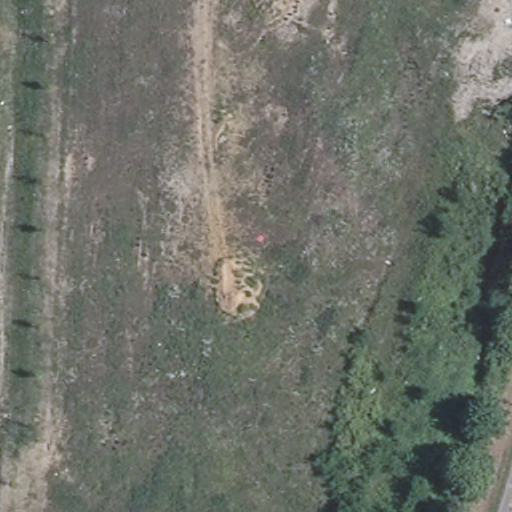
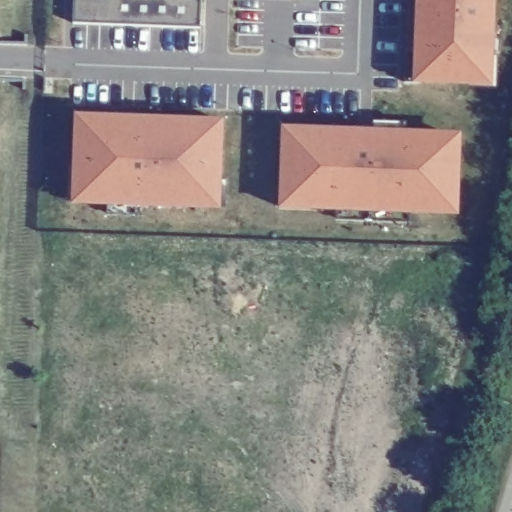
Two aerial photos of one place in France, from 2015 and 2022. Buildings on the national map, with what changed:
new [(73,24),(73,0),(200,0),(202,29),(73,24)]
new [(414,83),(417,0),(499,0),(497,87),(414,83)]
new [(69,166),(76,167),(77,116),(112,117),(150,118),(149,126),(187,127),(187,119),(222,121),(220,181),(227,182),(227,208),(186,207),(144,206),(145,217),(95,214),(95,202),(67,201),(69,166)]
new [(285,137),(297,137),(297,126),(333,126),(333,131),(449,134),(448,167),(458,168),(457,203),(411,202),(410,222),(337,219),(336,208),(282,207),(285,137)]

